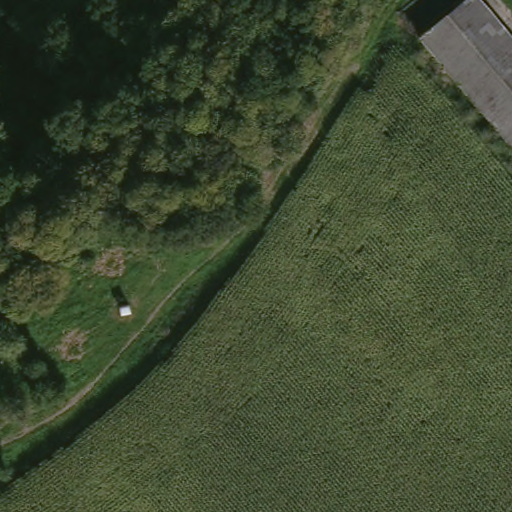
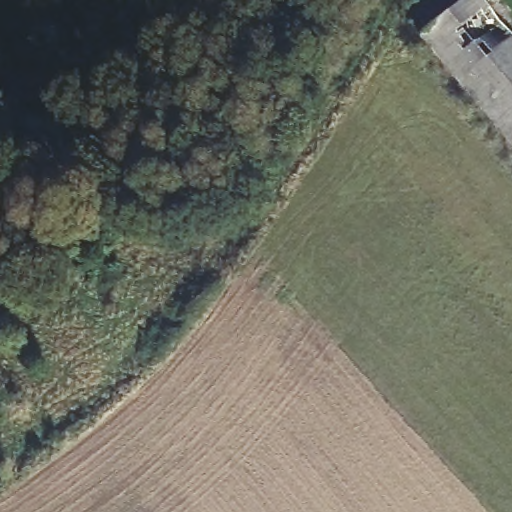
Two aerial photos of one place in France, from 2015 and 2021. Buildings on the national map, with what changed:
unchanged [(476,0),(512,44),(512,150),(418,40),(467,0),(476,0)]

